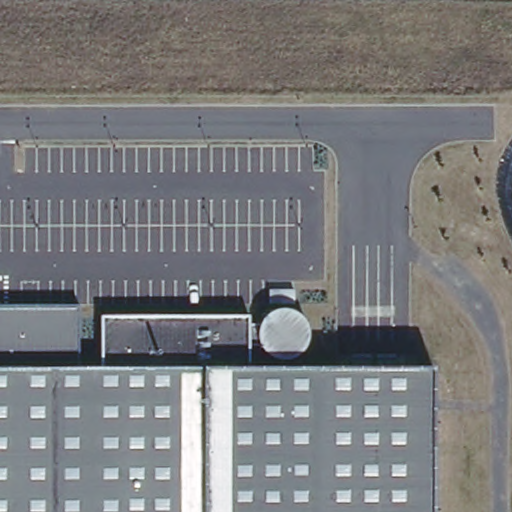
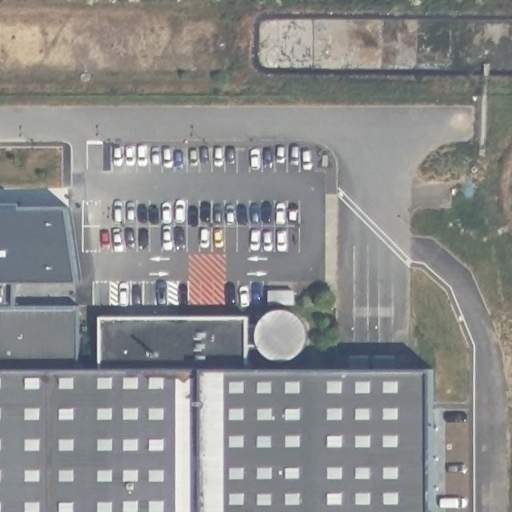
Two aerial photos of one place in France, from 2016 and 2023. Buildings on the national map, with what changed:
new [(80,280),(0,282),(0,207),(65,208),(80,280)]
unchanged [(77,368),(102,367),(102,315),(246,317),(248,368),(427,369),(428,512),(0,512),(0,308),(75,309),(77,368)]

